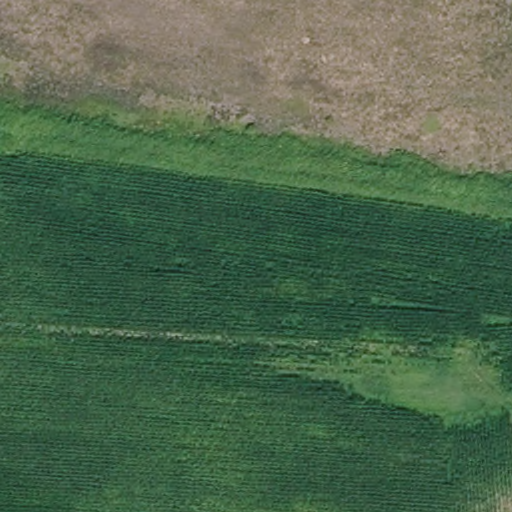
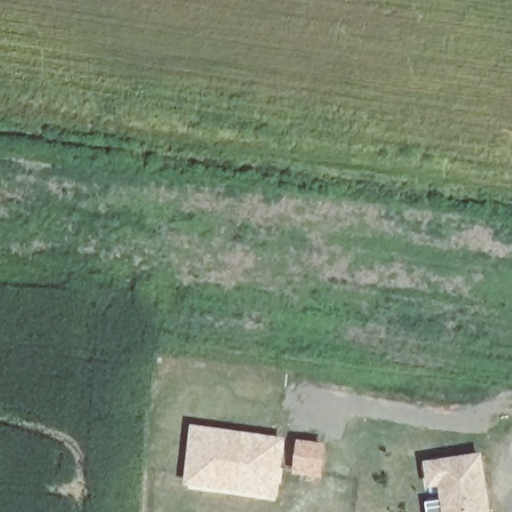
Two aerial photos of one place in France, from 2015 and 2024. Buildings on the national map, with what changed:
new [(190,423),(286,437),(276,500),(182,486),(190,423)]
new [(297,438),(327,442),(322,479),(292,473),(297,438)]
new [(491,512),(444,512),(440,484),(428,486),(426,462),(482,453),(491,512)]

